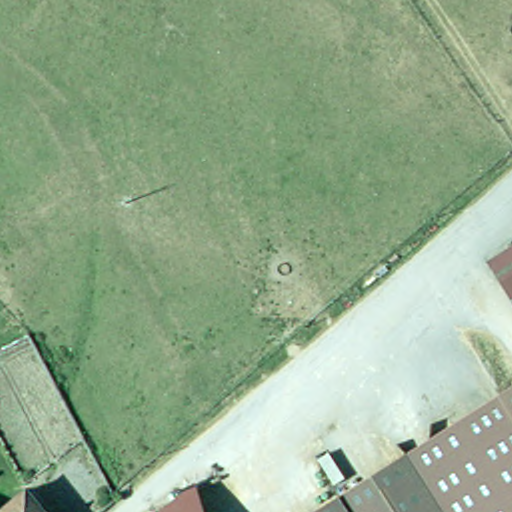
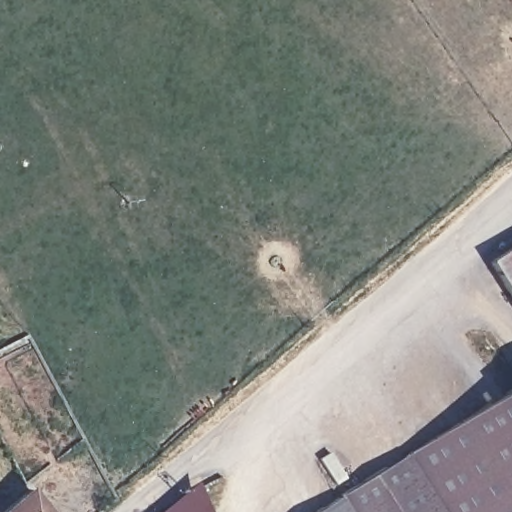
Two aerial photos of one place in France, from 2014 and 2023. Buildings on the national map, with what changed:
unchanged [(512,246),(512,304),(486,263),(512,246)]
unchanged [(512,389),(512,512),(319,512),(512,389)]
unchanged [(220,478),(221,490),(223,512),(170,512),(220,478)]
unchanged [(33,493),(49,512),(10,512),(33,493)]

